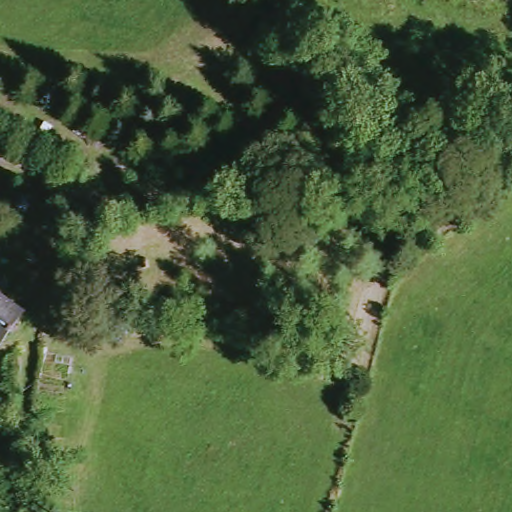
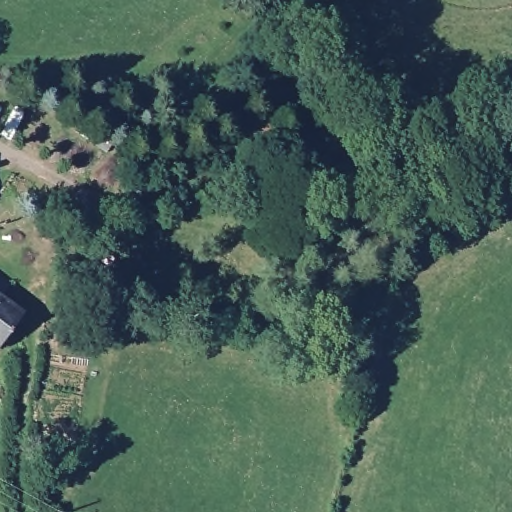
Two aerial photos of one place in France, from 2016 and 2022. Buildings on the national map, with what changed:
unchanged [(0,292),(0,270),(9,276),(0,292)]
unchanged [(0,339),(0,293),(22,308),(0,339)]

